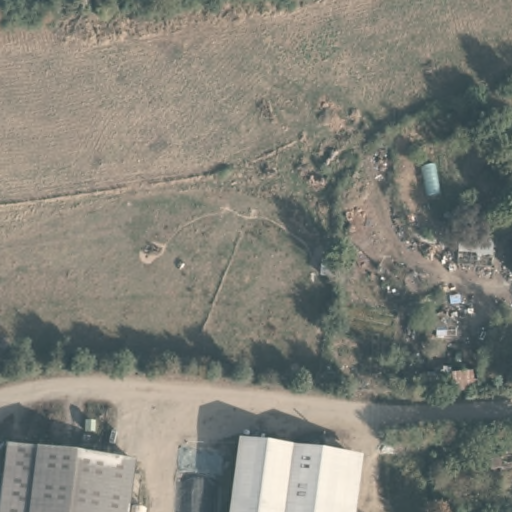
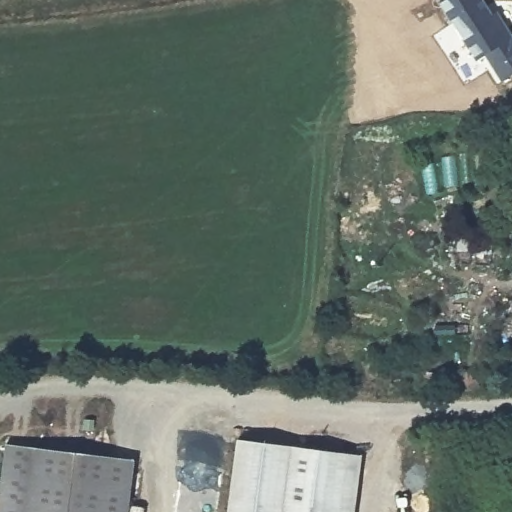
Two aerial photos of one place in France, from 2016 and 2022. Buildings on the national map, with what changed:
new [(495,9),(511,33),(512,32),(512,73),(501,80),(483,54),(475,59),(438,0),(483,0),(491,11),(495,9)]
unchanged [(490,249),(490,256),(483,257),(482,262),(470,261),(471,249),(490,249)]
unchanged [(464,364),(463,381),(438,382),(437,365),(464,364)]
unchanged [(10,440),(136,457),(129,512),(1,512),(10,440)]
unchanged [(362,455),(355,512),(230,512),(239,441),(362,455)]
unchanged [(500,445),(500,468),(491,468),(490,445),(500,445)]

